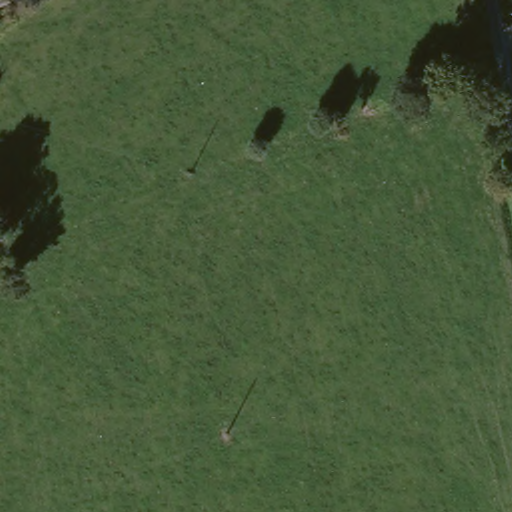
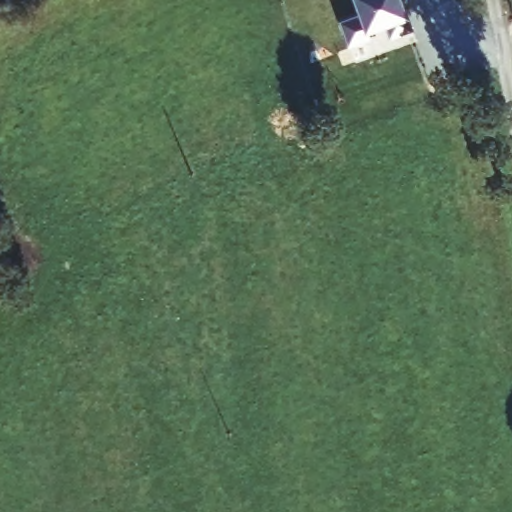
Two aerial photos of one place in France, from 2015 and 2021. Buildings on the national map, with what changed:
new [(413,30),(390,39),(383,26),(367,31),(370,39),(348,46),(340,21),(360,13),(354,0),(402,0),(413,30)]

